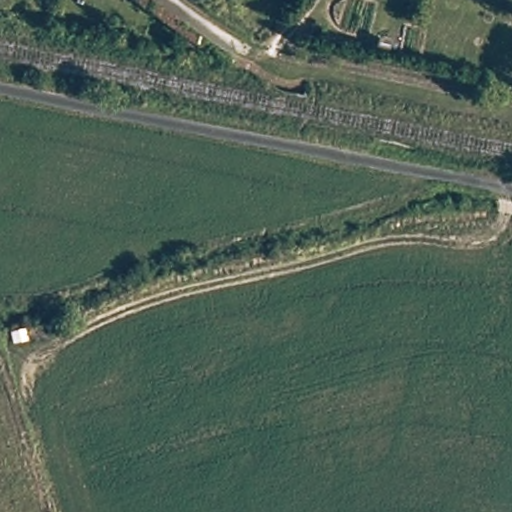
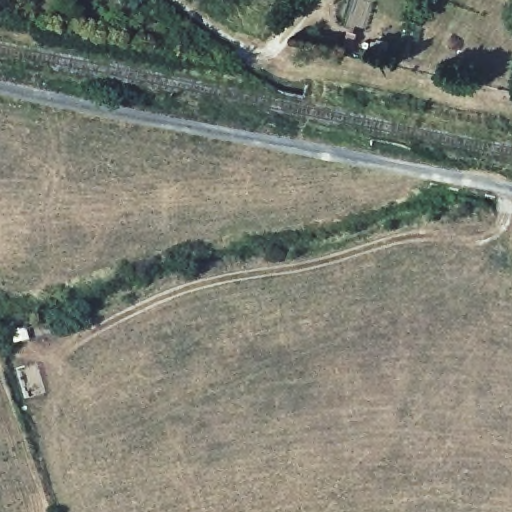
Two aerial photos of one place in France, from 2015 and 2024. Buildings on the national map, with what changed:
unchanged [(241,12),(231,11),(233,0),(243,0),(241,12)]

